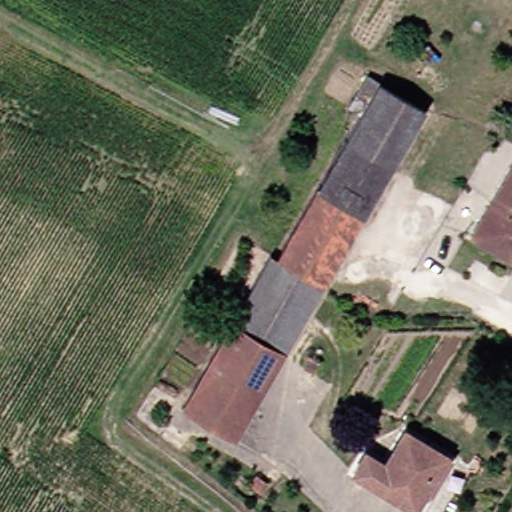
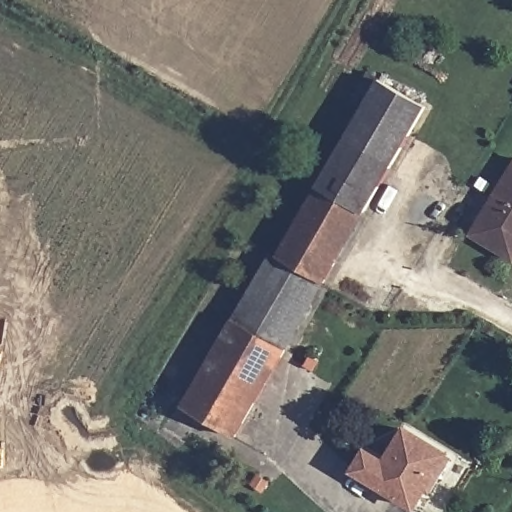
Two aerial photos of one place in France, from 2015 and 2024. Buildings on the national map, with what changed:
unchanged [(363,214),(315,184),(352,120),(338,111),(361,75),(422,112),(363,214)]
unchanged [(464,236),(509,159),(512,161),(512,253),(507,261),(464,236)]
unchanged [(334,261),(304,243),(312,226),(295,216),(315,184),(363,214),(334,261)]
unchanged [(270,256),(295,216),(312,226),(304,243),(334,261),(319,286),(270,256)]
unchanged [(280,351),(230,320),(270,256),(319,286),(280,351)]
unchanged [(177,405),(230,320),(280,351),(229,435),(177,405)]
unchanged [(305,365),(299,375),(289,368),(295,360),(305,365)]
unchanged [(427,492),(419,489),(409,507),(348,470),(360,451),(379,461),(397,430),(438,455),(433,463),(441,468),(427,492)]

